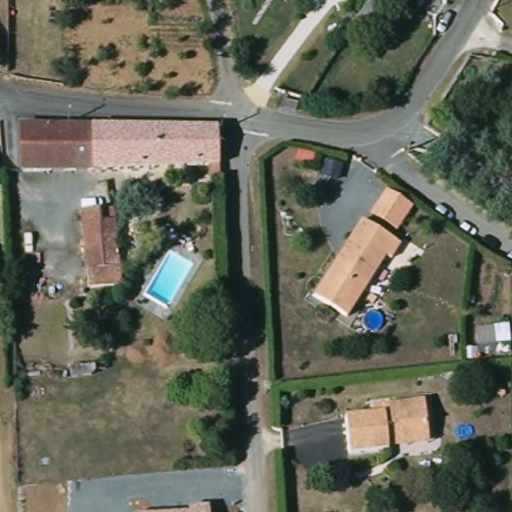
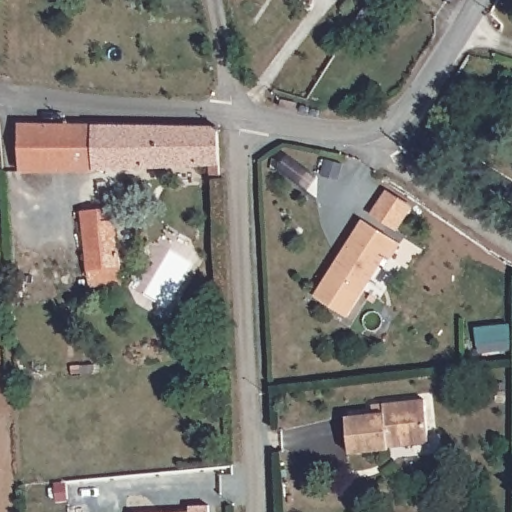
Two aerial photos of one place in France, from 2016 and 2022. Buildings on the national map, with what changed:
unchanged [(387,8),(372,31),(366,27),(362,32),(353,27),(369,0),(373,0),(387,8)]
unchanged [(21,125),(70,126),(71,170),(23,171),(21,125)]
unchanged [(85,126),(85,127),(94,127),(94,126),(126,126),(137,126),(218,126),(220,178),(211,179),(210,162),(181,164),(79,169),(71,170),(70,126),(85,126)]
unchanged [(399,242),(379,223),(397,202),(418,221),(399,242)]
unchanged [(122,282),(90,286),(81,210),(114,207),(122,282)]
unchanged [(405,253),(393,266),(389,262),(341,317),(311,291),(371,223),(405,253)]
unchanged [(390,445),(390,447),(350,451),(347,414),(374,412),(373,402),(426,397),(430,435),(431,441),(390,445)]
unchanged [(209,507),(209,512),(189,512),(189,508),(209,507)]

